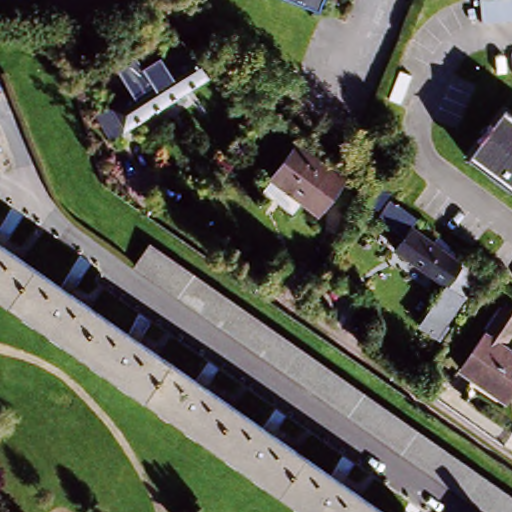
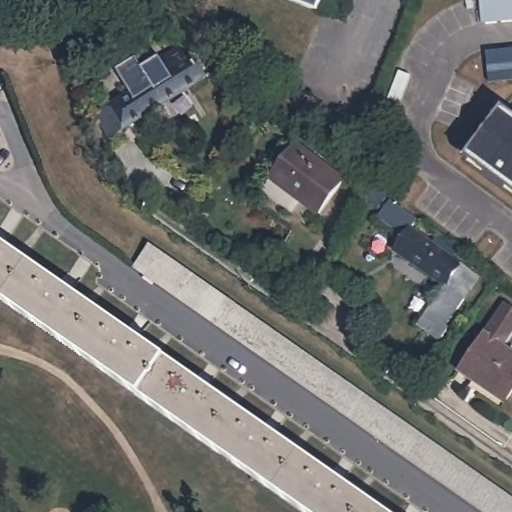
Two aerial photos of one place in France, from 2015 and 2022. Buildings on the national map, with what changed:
unchanged [(314,12),(283,0),(318,0),(314,12)]
unchanged [(92,122),(104,115),(104,114),(125,101),(125,100),(128,98),(115,76),(142,58),(149,68),(150,68),(155,65),(155,66),(174,54),(192,67),(202,84),(105,144),(94,129),(92,122)]
unchanged [(464,159),(499,112),(512,122),(512,196),(464,159)]
unchanged [(299,146),(345,180),(320,214),(307,205),(297,216),(265,192),(299,146)]
unchanged [(377,217),(395,196),(427,220),(416,234),(410,230),(402,240),(377,217)]
unchanged [(445,338),(424,323),(447,292),(390,256),(402,240),(410,230),(416,234),(482,280),(462,302),(467,306),(445,338)]
unchanged [(299,512),(0,299),(0,244),(376,512),(299,512)]
unchanged [(512,505),(512,512),(478,512),(135,270),(152,247),(512,505)]
unchanged [(509,308),(512,311),(512,334),(502,349),(512,357),(512,393),(507,401),(480,381),(476,386),(462,376),(509,308)]

